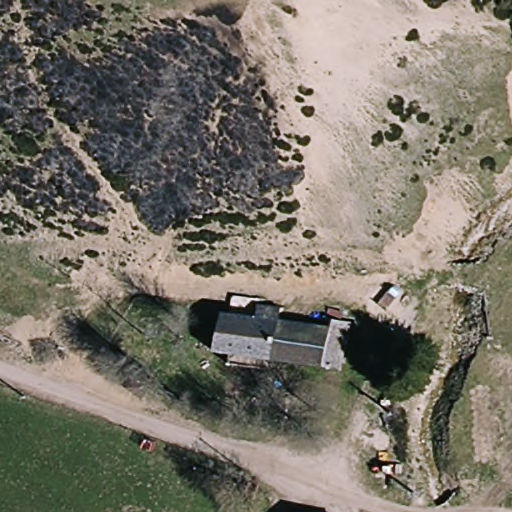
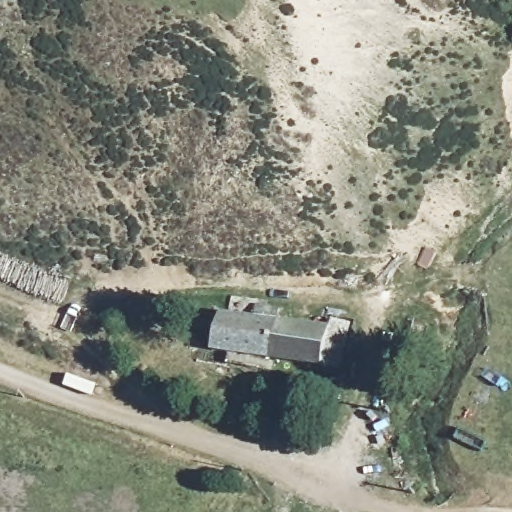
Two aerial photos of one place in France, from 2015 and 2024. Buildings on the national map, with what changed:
unchanged [(255,310),(261,296),(285,305),(280,316),(326,332),(333,318),(354,327),(337,377),(270,355),(262,369),(231,355),(235,346),(217,337),(229,302),(255,310)]

